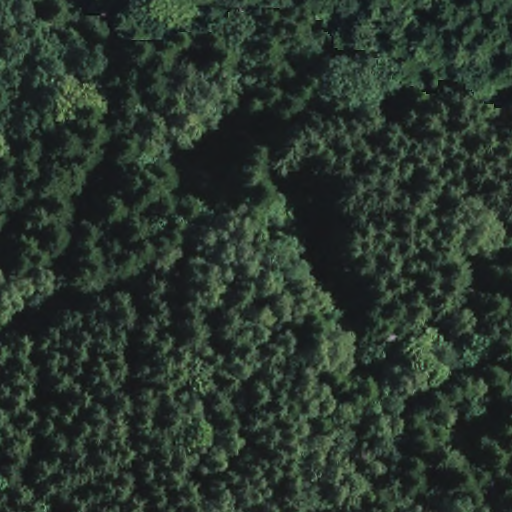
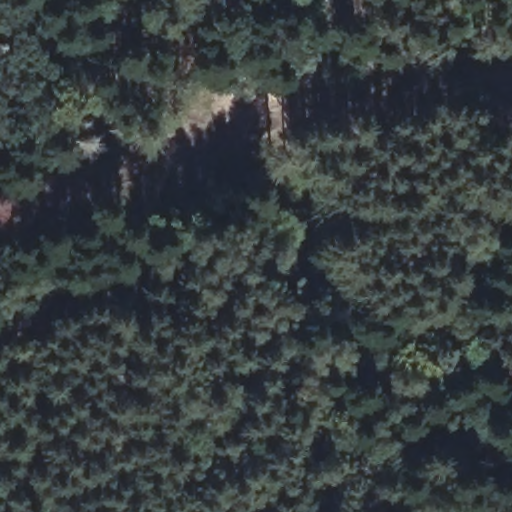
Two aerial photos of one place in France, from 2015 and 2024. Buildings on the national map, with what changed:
unchanged [(310,214),(317,250),(286,256),(279,221),(310,214)]

